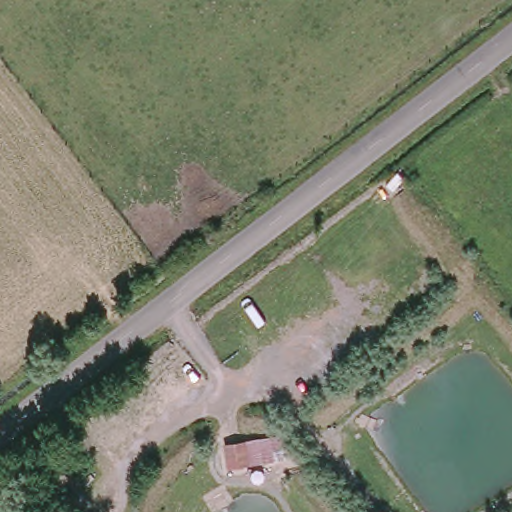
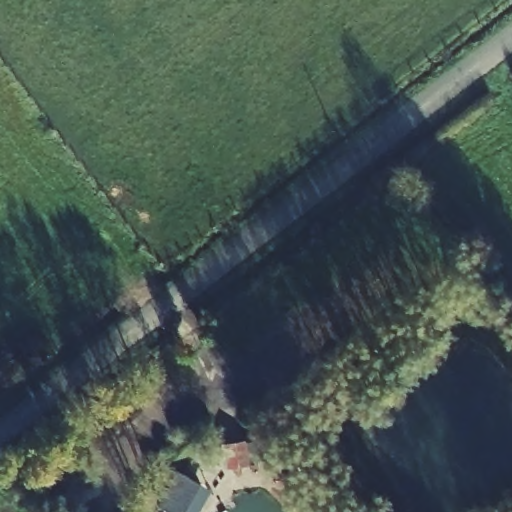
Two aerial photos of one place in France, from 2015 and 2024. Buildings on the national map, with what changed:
unchanged [(285,440),(295,439),(296,457),(226,465),(223,440),(282,432),(285,440)]
new [(212,490),(200,512),(174,512),(158,503),(177,469),(212,490)]
unchanged [(60,512),(54,505),(70,492),(80,508),(76,512),(60,512)]

